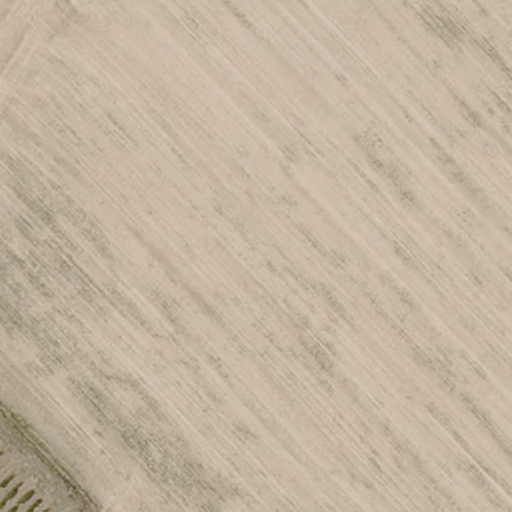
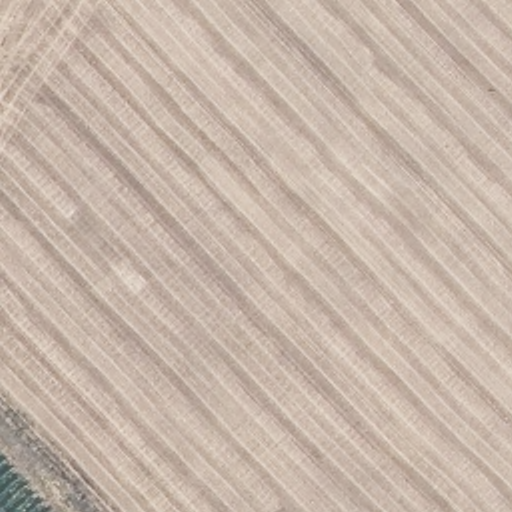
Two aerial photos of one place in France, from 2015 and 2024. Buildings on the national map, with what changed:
[]

